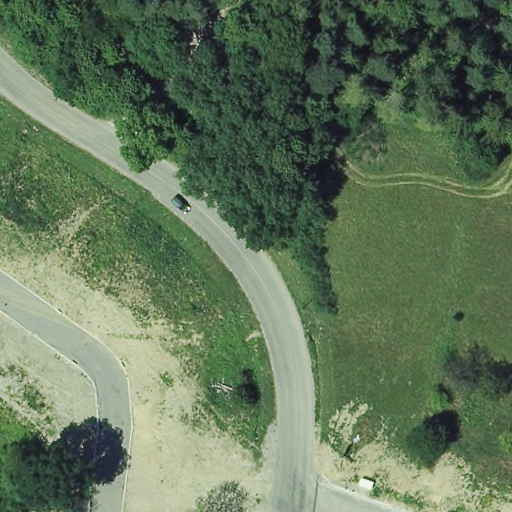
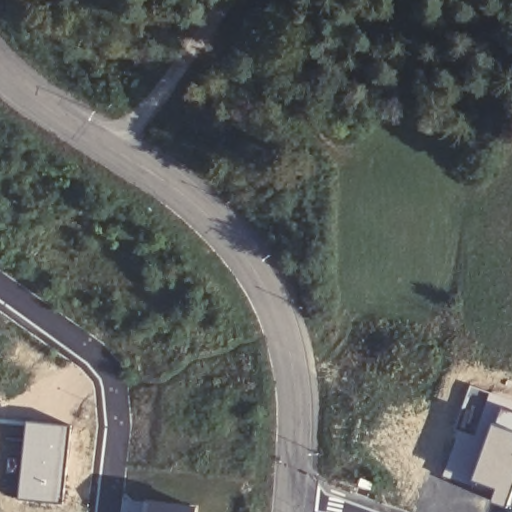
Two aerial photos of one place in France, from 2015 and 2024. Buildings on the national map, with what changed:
new [(512,408),(512,497),(507,508),(489,501),(495,488),(470,479),(498,403),(512,408)]
new [(26,420),(70,425),(62,505),(17,498),(26,420)]
new [(205,501),(204,512),(134,512),(136,495),(205,501)]

